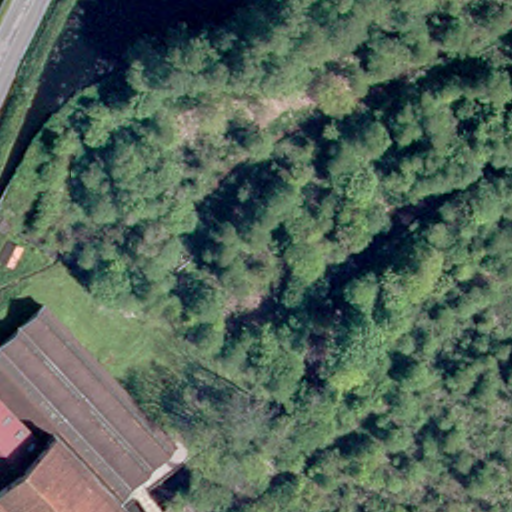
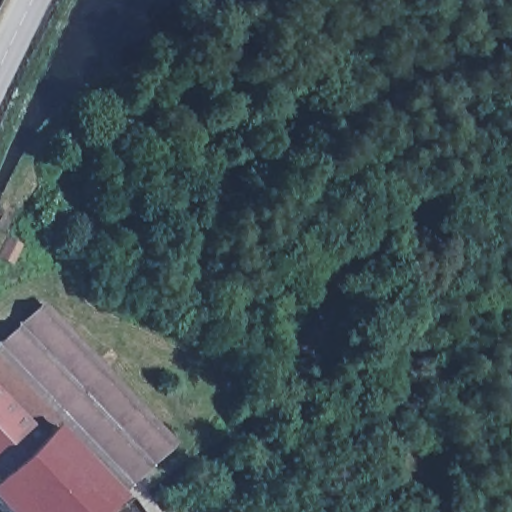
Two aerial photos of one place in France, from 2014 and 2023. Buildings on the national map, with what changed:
unchanged [(0,254),(0,250),(7,236),(23,244),(15,262),(0,254)]
unchanged [(48,309),(182,462),(166,475),(162,470),(114,512),(3,512),(0,508),(0,493),(2,492),(0,489),(0,352),(48,309)]

